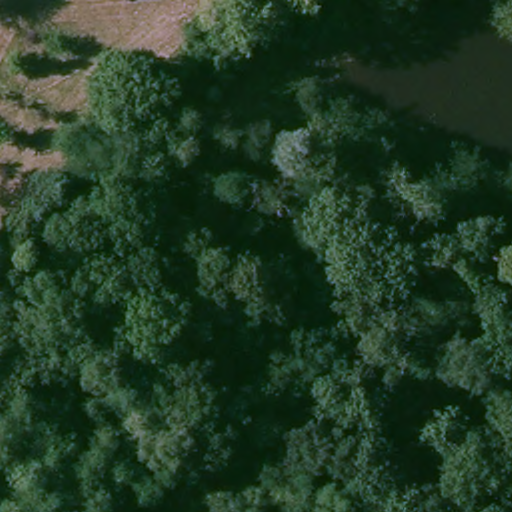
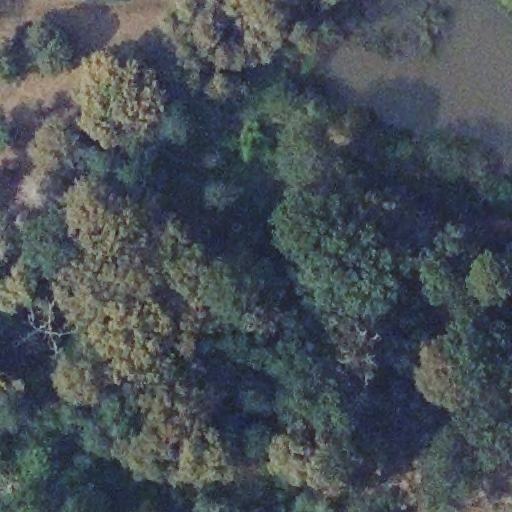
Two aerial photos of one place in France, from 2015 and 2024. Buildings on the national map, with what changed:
unchanged [(234,458),(270,482),(260,500),(222,477),(234,458)]

